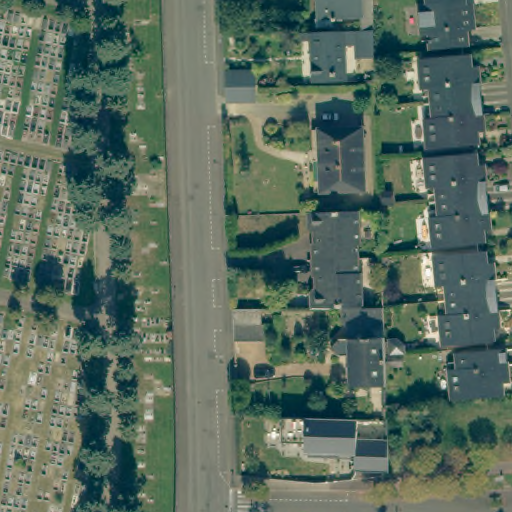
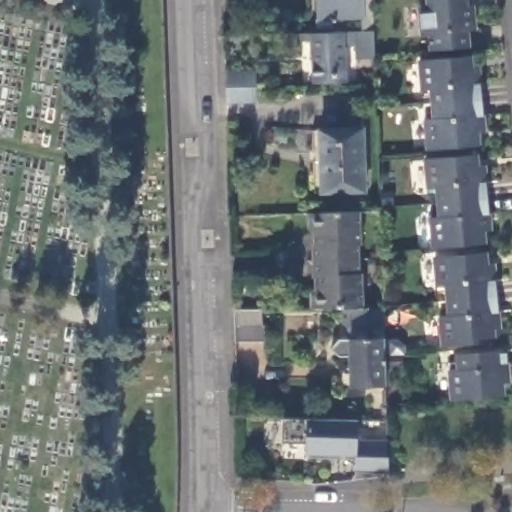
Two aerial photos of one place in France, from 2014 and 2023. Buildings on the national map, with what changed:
unchanged [(337,20),(337,23),(333,23),(332,20),(320,21),(318,0),(361,0),(362,19),(337,20)]
unchanged [(450,2),(451,9),(449,9),(448,5),(447,5),(427,7),(426,0),(463,0),(463,1),(450,2)]
unchanged [(427,7),(447,5),(448,5),(449,9),(451,9),(471,8),(473,33),(465,34),(466,47),(429,50),(427,37),(421,38),(418,8),(427,7)]
unchanged [(354,47),(345,47),(346,76),(312,78),(310,42),(300,43),(299,35),(353,33),(354,47)]
unchanged [(436,105),(435,89),(425,90),(423,63),(468,59),(470,69),(482,68),(485,100),(436,105)]
unchanged [(226,103),(225,88),(225,74),(253,73),(254,86),(254,102),(226,103)]
unchanged [(488,134),(476,134),(477,145),(431,150),(428,121),(437,120),(436,105),(485,100),(488,134)]
unchanged [(312,131),(362,130),(363,193),(312,194),(312,131)]
unchanged [(442,204),(440,189),(431,189),(428,160),(475,156),(476,169),(487,168),(490,199),(442,204)]
unchanged [(493,230),(482,232),(482,243),(436,248),(433,219),(442,219),(442,204),(490,199),(493,230)]
unchanged [(310,262),(310,245),(315,245),(315,234),(310,235),(306,230),(305,214),(360,212),(362,244),(359,244),(360,259),(310,262)]
unchanged [(451,302),(450,287),(440,288),(437,258),(483,254),(485,266),(497,264),(500,297),(451,302)]
unchanged [(347,309),(309,310),(308,294),(312,290),(317,289),(317,279),(311,279),(310,262),(360,259),(360,277),(362,277),(363,309),(347,309)]
unchanged [(502,329),(491,331),(492,342),(445,346),(442,317),(452,316),(451,302),(500,297),(502,329)]
unchanged [(347,309),(363,309),(383,309),(385,339),(349,340),(347,309)]
unchanged [(234,310),(262,310),(262,328),(263,328),(263,342),(235,342),(234,328),(234,310)]
unchanged [(387,387),(351,388),(349,340),(385,339),(385,357),(387,387)]
unchanged [(451,400),(448,371),(457,370),(456,355),(504,351),(507,383),(495,384),(496,396),(451,400)]
unchanged [(306,458),(308,419),(362,421),(361,460),(306,458)]
unchanged [(389,441),(389,473),(353,472),(354,459),(361,460),(361,439),(389,441)]

